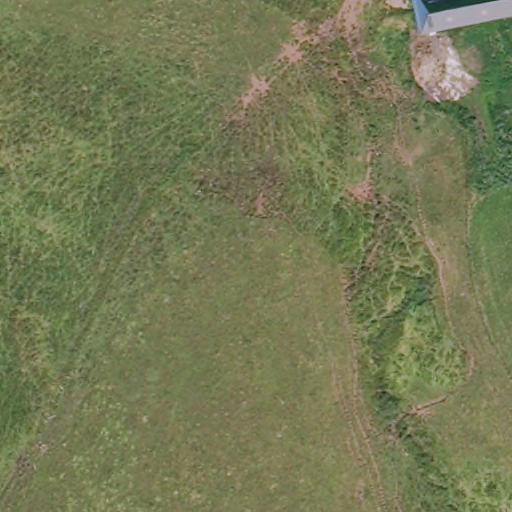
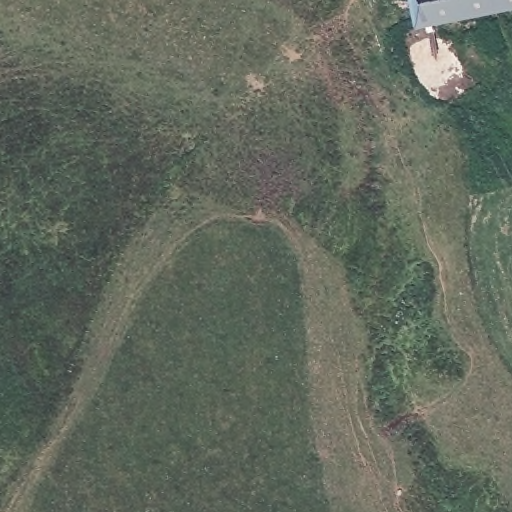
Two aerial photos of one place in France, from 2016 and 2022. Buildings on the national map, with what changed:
unchanged [(397,0),(512,0),(512,14),(403,36),(397,0)]

